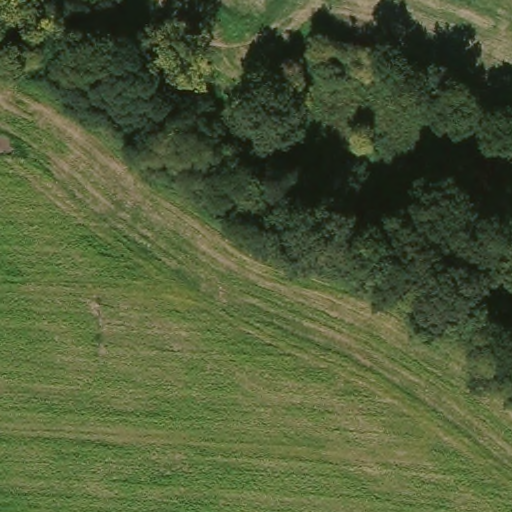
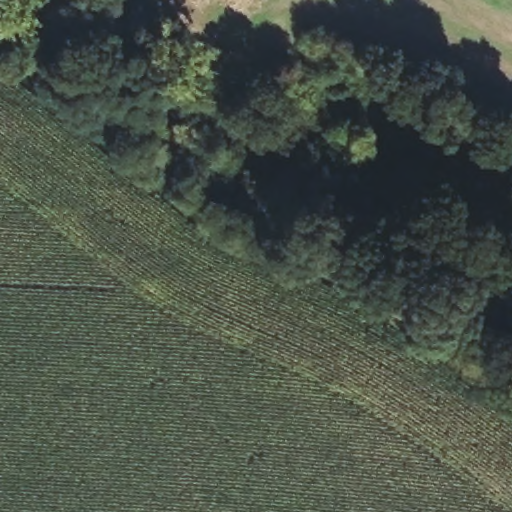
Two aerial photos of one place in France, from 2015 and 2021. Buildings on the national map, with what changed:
[]

